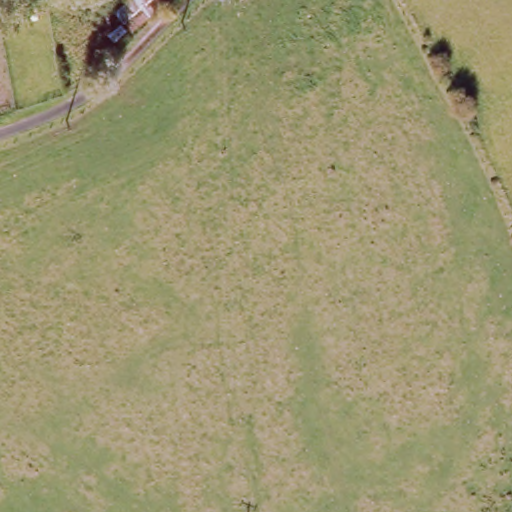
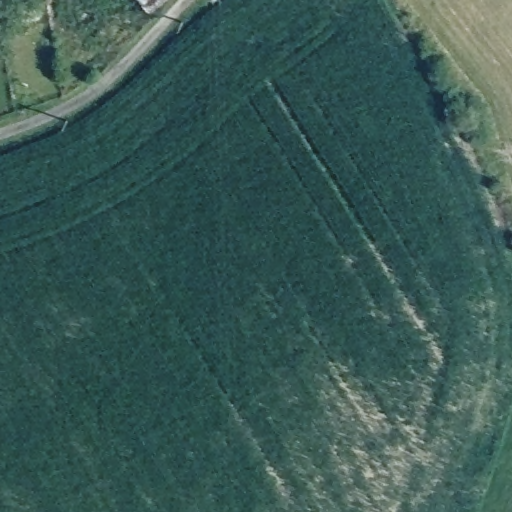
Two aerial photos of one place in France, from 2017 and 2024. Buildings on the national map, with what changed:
unchanged [(170,0),(130,33),(110,45),(97,26),(111,10),(124,0),(170,0)]

